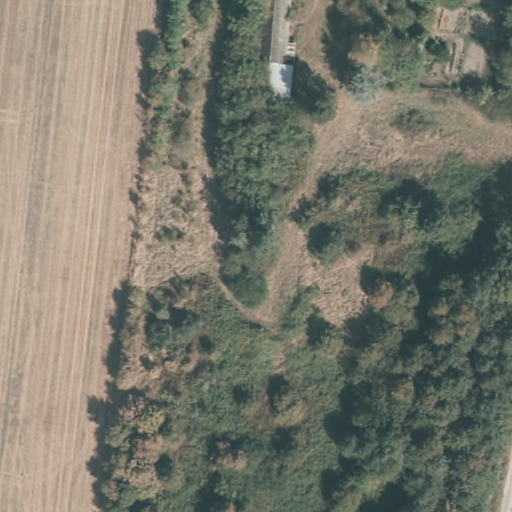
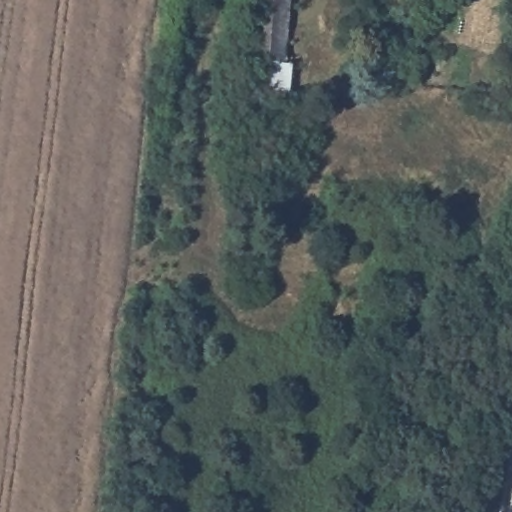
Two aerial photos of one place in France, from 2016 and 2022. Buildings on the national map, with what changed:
unchanged [(258,0),(292,0),(289,70),(283,70),(282,108),(262,106),(264,67),(259,67),(253,67),(258,0)]

